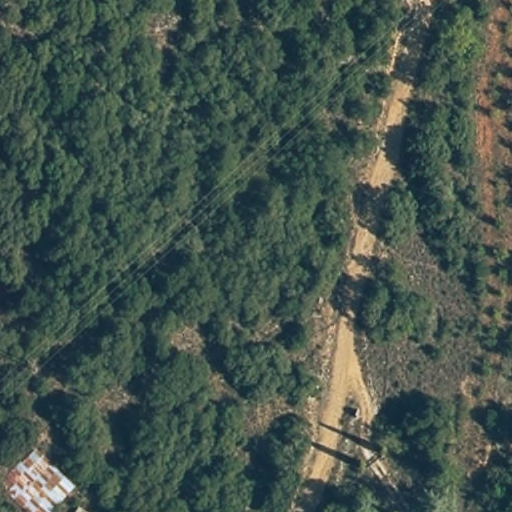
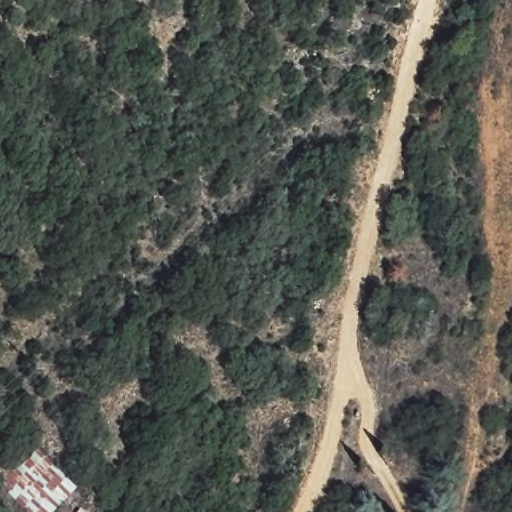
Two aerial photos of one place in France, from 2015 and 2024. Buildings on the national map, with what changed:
unchanged [(91,512),(77,512),(82,505),(91,512)]

